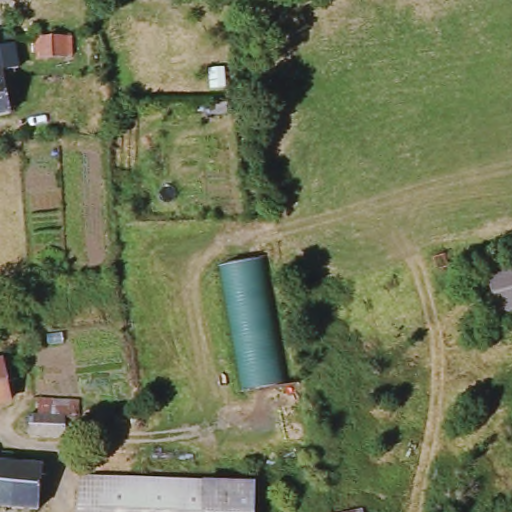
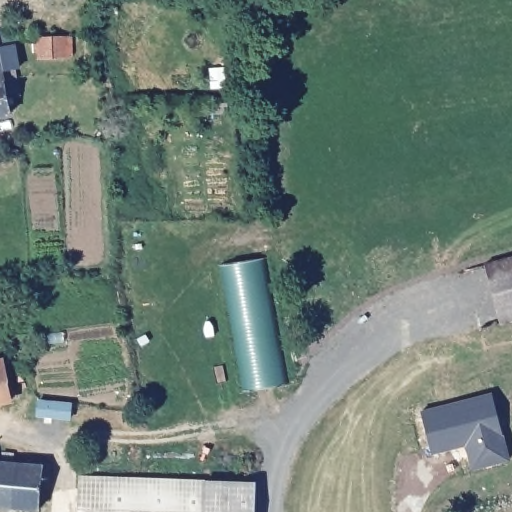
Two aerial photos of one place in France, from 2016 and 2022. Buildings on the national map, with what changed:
unchanged [(1,38),(2,47),(18,43),(25,71),(7,75),(16,115),(0,119),(0,39),(1,38)]
unchanged [(47,60),(46,42),(78,42),(79,60),(47,60)]
unchanged [(223,264),(267,255),(291,381),(246,389),(223,264)]
unchanged [(478,266),(512,258),(512,319),(491,324),(478,266)]
unchanged [(0,408),(0,367),(10,405),(0,408)]
new [(431,453),(423,411),(494,397),(508,464),(471,471),(465,439),(449,443),(450,449),(431,453)]
unchanged [(85,405),(83,427),(38,425),(41,401),(85,405)]
unchanged [(42,485),(40,512),(29,512),(0,509),(0,461),(50,463),(48,485),(42,485)]
unchanged [(257,479),(256,512),(82,512),(84,472),(257,479)]
unchanged [(361,512),(339,512),(359,505),(361,512)]

